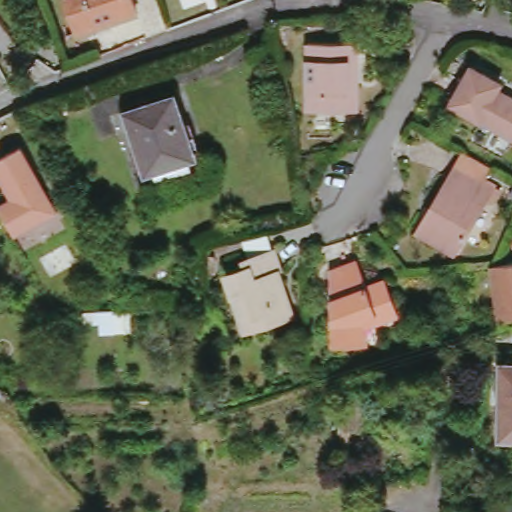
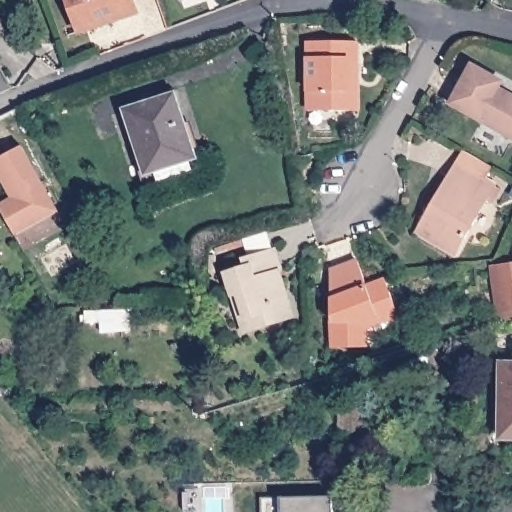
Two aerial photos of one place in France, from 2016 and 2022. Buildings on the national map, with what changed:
unchanged [(134,0),(139,13),(78,34),(67,0),(134,0)]
unchanged [(348,112),(308,111),(308,43),(358,43),(358,80),(358,112),(348,112)]
unchanged [(499,90),(512,98),(512,139),(452,105),(474,67),(503,83),(499,90)]
unchanged [(170,91),(191,151),(197,150),(201,165),(146,183),(122,106),(170,91)]
unchanged [(0,174),(0,165),(25,151),(45,186),(41,189),(44,195),(48,192),(61,214),(19,238),(3,210),(16,202),(0,174)]
unchanged [(430,214),(456,170),(464,156),(492,173),(485,187),(500,195),(492,209),(488,206),(455,260),(422,240),(417,237),(430,214)]
unchanged [(244,321),(238,305),(228,274),(247,268),(246,261),(252,258),(247,241),(266,235),(271,252),(275,251),(282,272),(280,274),(294,317),(263,327),(247,333),(244,321)]
unchanged [(370,328),(371,348),(338,349),(335,272),(363,262),(369,288),(392,281),(401,309),(403,315),(370,328)]
unchanged [(494,266),(499,265),(512,263),(512,321),(501,325),(494,266)]
unchanged [(502,364),(512,364),(512,438),(501,438),(502,364)]
new [(332,498),(332,512),(262,512),(262,499),(282,499),(332,498)]

